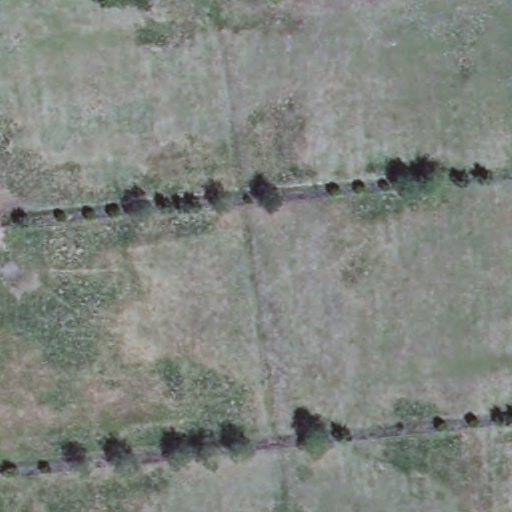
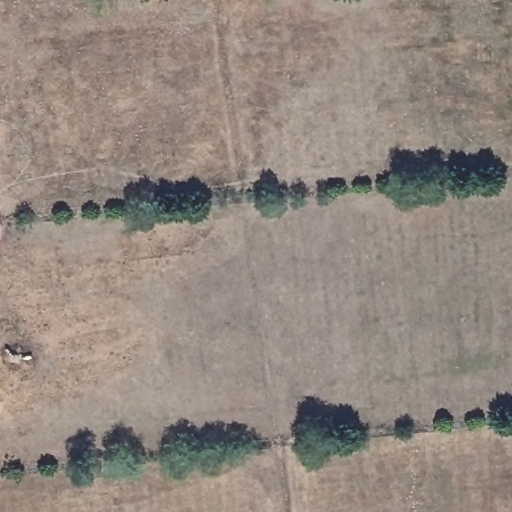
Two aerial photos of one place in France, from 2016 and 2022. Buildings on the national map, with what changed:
unchanged [(0,236),(0,221),(3,236),(0,236)]

